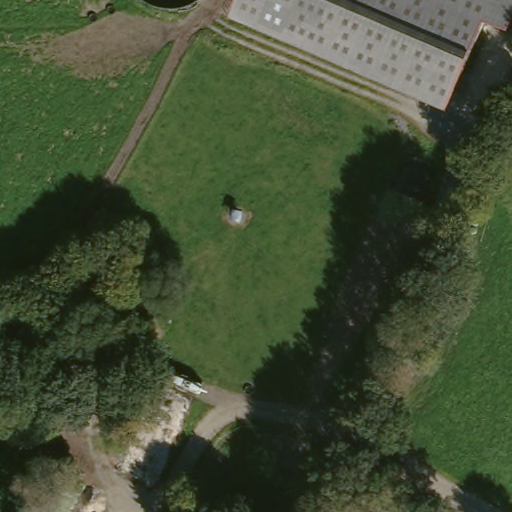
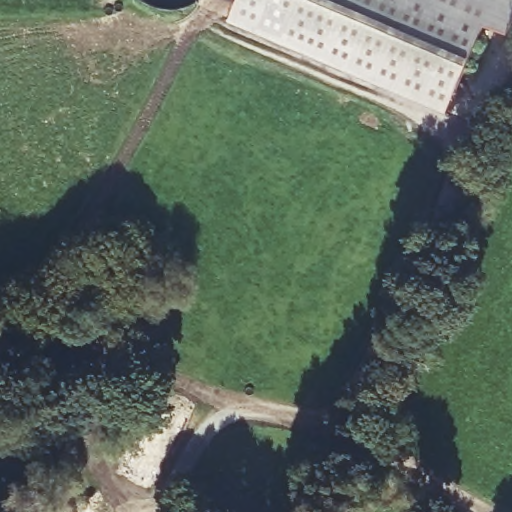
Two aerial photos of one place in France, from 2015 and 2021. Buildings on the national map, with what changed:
unchanged [(512,0),(512,30),(485,19),(445,110),(364,76),(233,20),(241,0),(512,0)]
unchanged [(224,512),(168,512),(183,488),(224,512)]

